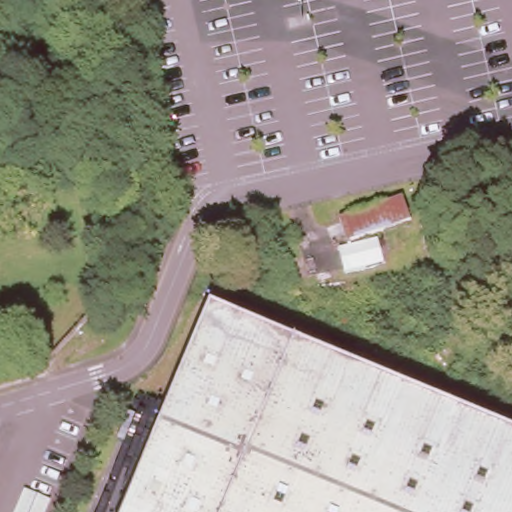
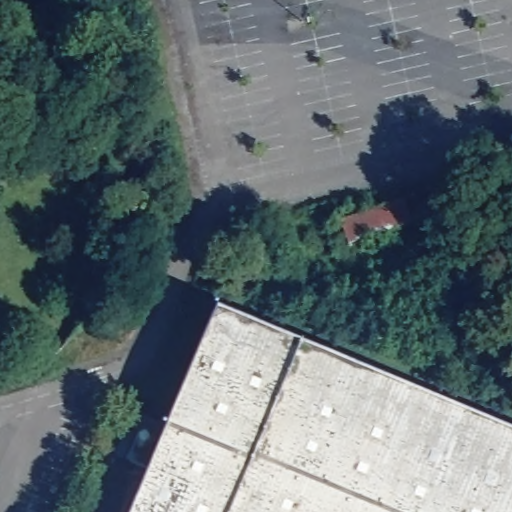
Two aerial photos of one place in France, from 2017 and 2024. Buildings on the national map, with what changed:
unchanged [(412,224),(348,247),(337,216),(402,195),(412,224)]
unchanged [(512,435),(512,512),(131,512),(214,312),(512,435)]

